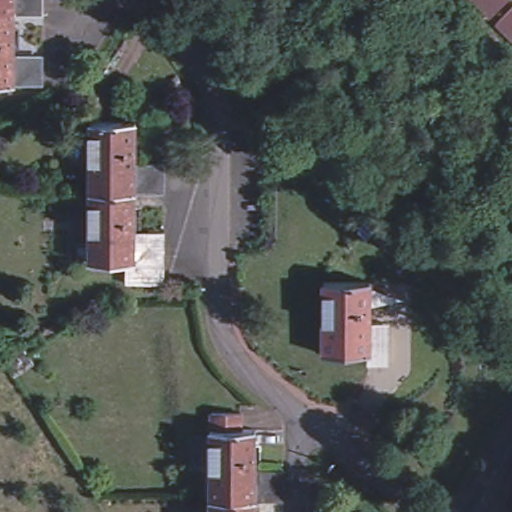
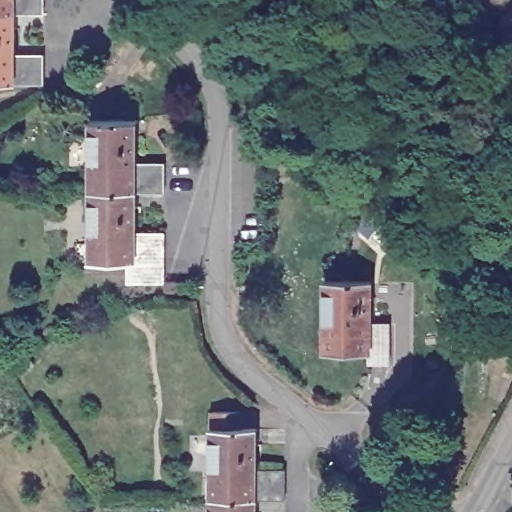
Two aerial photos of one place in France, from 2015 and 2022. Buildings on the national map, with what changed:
unchanged [(0,83),(0,0),(39,0),(39,11),(11,11),(11,12),(10,60),(39,60),(39,82),(10,83),(0,83)]
unchanged [(487,16),(471,0),(504,0),(487,16)]
unchanged [(512,2),(512,41),(492,22),(512,2)]
unchanged [(87,118),(85,118),(86,116),(131,116),(131,118),(130,118),(130,168),(159,168),(159,189),(130,188),(87,188),(87,118)]
unchanged [(87,188),(130,188),(130,238),(159,238),(159,279),(123,280),(122,259),(86,259),(86,257),(87,257),(87,188)]
unchanged [(382,225),(399,240),(390,251),(372,236),(382,225)]
unchanged [(390,364),(369,364),(369,355),(325,355),(324,284),(370,284),(370,335),(390,334),(390,364)]
unchanged [(0,358),(20,346),(25,356),(32,366),(13,378),(7,368),(0,358)]
unchanged [(208,433),(207,433),(207,430),(209,430),(209,414),(239,414),(239,431),(254,431),(254,433),(252,433),(252,481),(280,482),(280,502),(251,502),(251,512),(207,512),(207,501),(208,433)]

